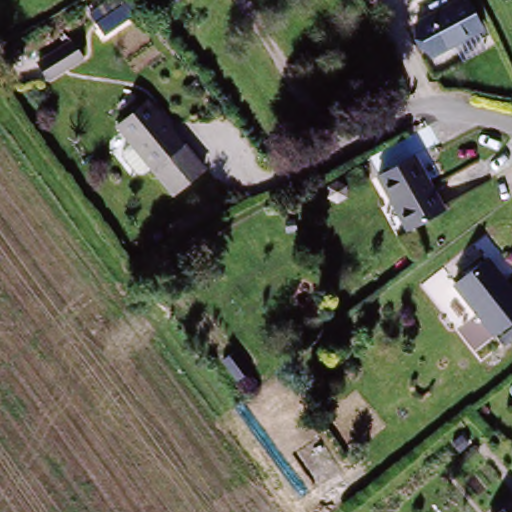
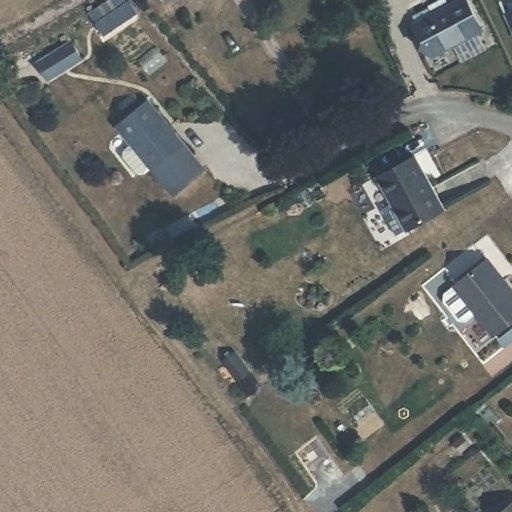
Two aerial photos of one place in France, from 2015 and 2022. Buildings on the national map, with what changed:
unchanged [(129,0),(144,20),(102,46),(87,20),(118,0),(129,0)]
unchanged [(432,41),(447,34),(443,23),(460,16),(464,26),(479,19),(492,49),(445,70),(432,41)]
unchanged [(82,59),(50,78),(41,63),(72,43),(82,59)]
unchanged [(206,172),(174,197),(122,127),(153,106),(206,172)]
unchanged [(402,235),(377,182),(413,164),(439,216),(402,235)]
unchanged [(455,280),(488,256),(512,290),(512,315),(490,330),(455,280)]
unchanged [(257,391),(242,367),(256,357),(271,381),(257,391)]

